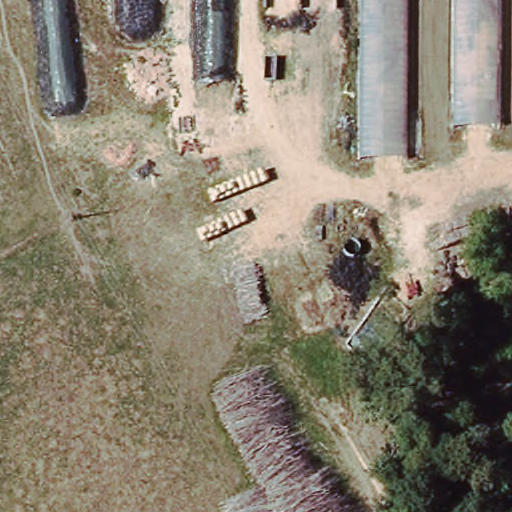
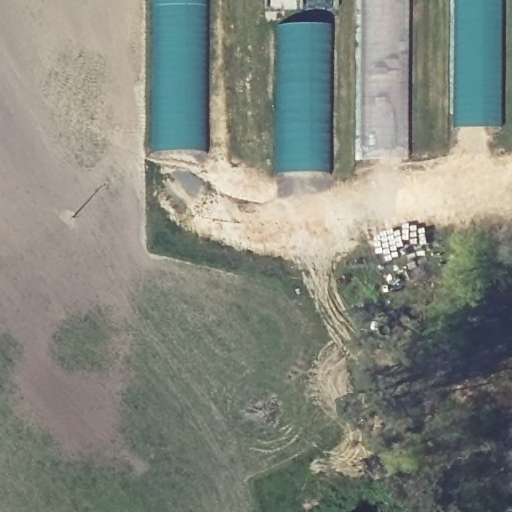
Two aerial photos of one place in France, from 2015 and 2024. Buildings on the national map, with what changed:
new [(152,153),(153,0),(203,0),(204,152),(152,153)]
unchanged [(396,142),(396,151),(352,149),(354,0),(397,0),(396,142)]
unchanged [(495,129),(448,128),(449,0),(496,0),(495,129)]
new [(276,25),(325,25),(325,174),(277,175),(276,25)]

